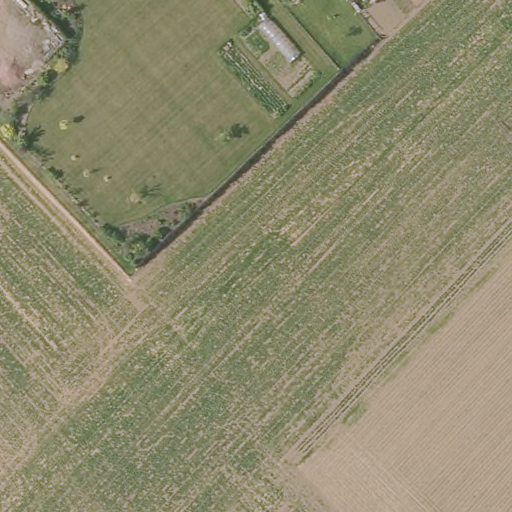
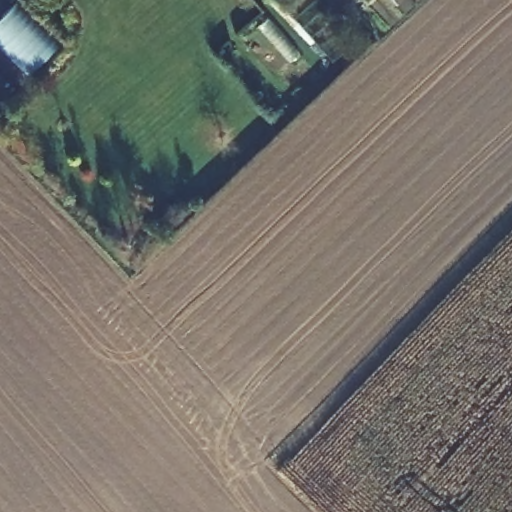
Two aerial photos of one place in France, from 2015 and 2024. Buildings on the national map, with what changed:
new [(63,41),(29,74),(0,46),(0,18),(18,0),(63,41)]

